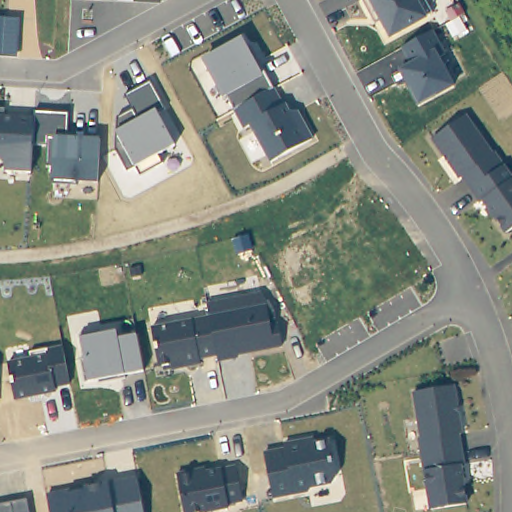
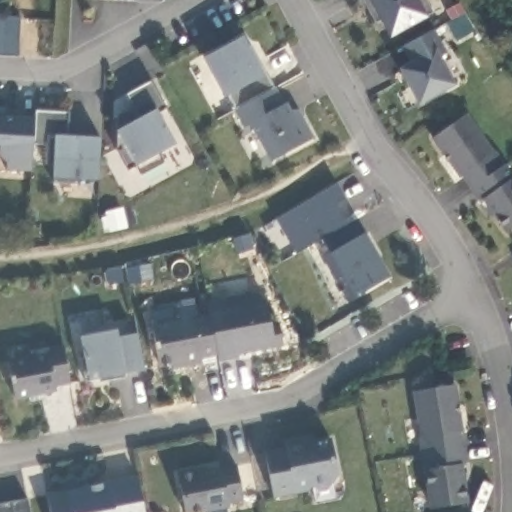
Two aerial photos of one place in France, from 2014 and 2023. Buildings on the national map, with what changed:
unchanged [(431,13),(426,17),(390,36),(369,0),(425,0),(431,13)]
unchanged [(19,18),(17,57),(0,56),(0,18),(19,18)]
unchanged [(433,29),(446,54),(440,56),(455,86),(418,105),(397,69),(409,62),(400,46),(433,29)]
unchanged [(241,36),(249,50),(251,49),(271,88),(274,88),(282,104),(286,103),(290,110),(298,110),(314,139),(270,162),(249,126),(244,129),(226,96),(222,97),(201,59),(241,36)]
unchanged [(149,81),(165,110),(158,114),(175,146),(157,154),(162,162),(140,174),(135,166),(127,170),(115,149),(117,117),(132,109),(125,95),(149,81)]
unchanged [(5,107),(5,114),(33,116),(34,110),(67,112),(67,136),(99,137),(98,183),(52,181),(53,164),(47,164),(48,144),(32,143),(31,172),(5,171),(5,165),(0,160),(0,107),(5,107)]
unchanged [(473,191),(463,175),(459,174),(435,136),(470,113),(493,153),(495,153),(505,168),(473,191)]
unchanged [(512,231),(505,236),(485,203),(482,205),(473,191),(505,168),(512,180),(512,231)]
new [(335,183),(345,197),(335,203),(347,223),(353,220),(362,235),(365,233),(380,257),(378,258),(390,276),(355,297),(343,278),(335,280),(322,257),(330,251),(323,238),(296,254),(275,220),(335,183)]
unchanged [(210,315),(207,302),(260,292),(266,304),(270,324),(278,323),(282,346),(236,354),(237,358),(219,361),(217,356),(199,359),(200,363),(171,369),(169,364),(158,365),(151,326),(210,315)]
unchanged [(116,330),(117,338),(136,335),(143,371),(125,374),(89,381),(80,336),(116,330)]
unchanged [(30,357),(30,351),(62,346),(70,383),(55,386),(55,393),(15,400),(7,361),(30,357)]
unchanged [(418,456),(416,438),(418,437),(412,391),(453,385),(458,435),(456,435),(457,450),(418,456)]
unchanged [(285,448),(283,442),(315,436),(315,441),(330,439),(337,475),(331,484),(310,488),(306,492),(272,498),(264,451),(285,448)]
unchanged [(457,450),(460,467),(457,467),(462,506),(425,510),(418,456),(457,450)]
unchanged [(235,463),(243,501),(229,504),(229,509),(212,512),(184,512),(177,474),(221,466),(235,463)]
unchanged [(107,482),(136,476),(143,512),(50,512),(47,493),(84,486),(107,482)]
unchanged [(28,512),(0,512),(0,504),(25,499),(28,512)]

